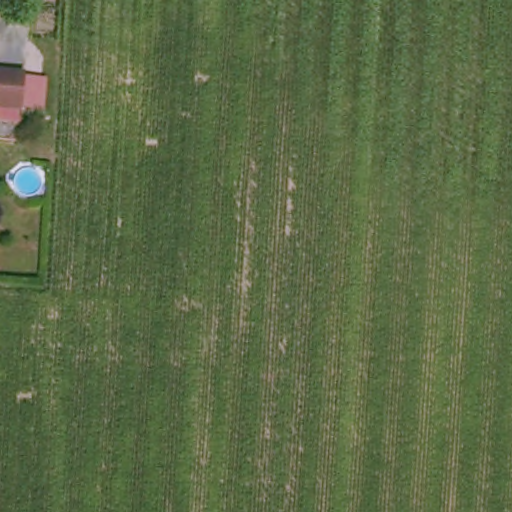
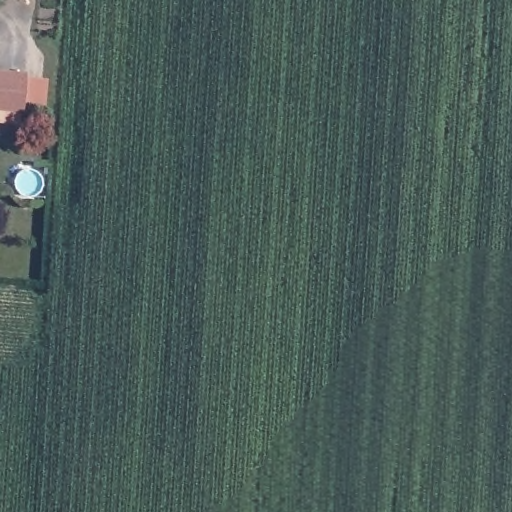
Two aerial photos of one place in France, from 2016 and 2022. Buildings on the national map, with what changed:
unchanged [(0,108),(0,72),(27,74),(23,110),(0,108)]

